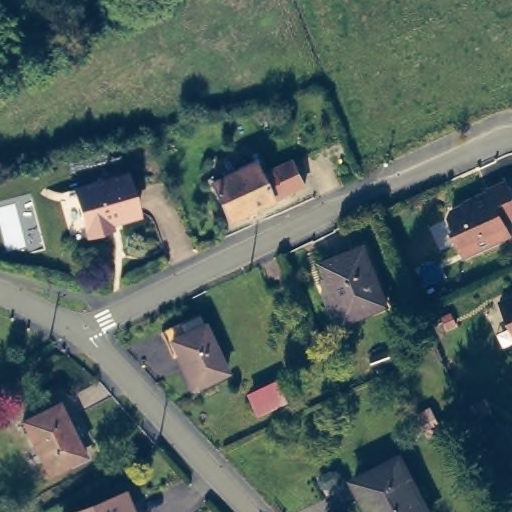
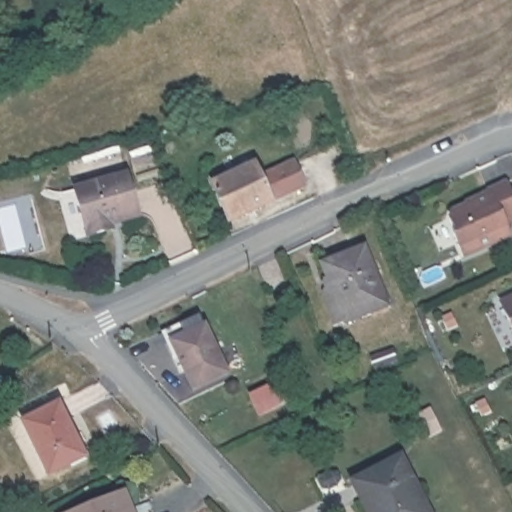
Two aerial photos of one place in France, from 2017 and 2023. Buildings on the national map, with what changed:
unchanged [(252,155),(263,178),(286,169),(297,191),(233,220),(216,184),(230,178),(228,173),(237,169),(235,163),(252,155)]
unchanged [(123,172),(134,211),(107,219),(109,225),(85,232),(72,186),(123,172)]
unchanged [(451,211),(489,193),(487,189),(505,181),(512,197),(512,219),(504,223),(509,234),(463,255),(452,235),(452,231),(455,230),(449,217),(451,211)]
unchanged [(359,248),(385,304),(346,323),(320,266),(359,248)]
unchanged [(500,302),(512,296),(512,328),(500,302)]
unchanged [(201,321),(227,378),(195,393),(167,334),(201,321)]
unchanged [(268,390),(276,408),(248,420),(240,402),(268,390)]
unchanged [(483,399),(489,410),(480,414),(475,403),(483,399)]
unchanged [(57,406),(81,457),(46,474),(23,422),(57,406)]
unchanged [(429,406),(440,429),(426,436),(415,414),(429,406)]
unchanged [(427,512),(379,512),(361,473),(401,454),(427,512)]
unchanged [(134,512),(73,512),(126,491),(134,512)]

